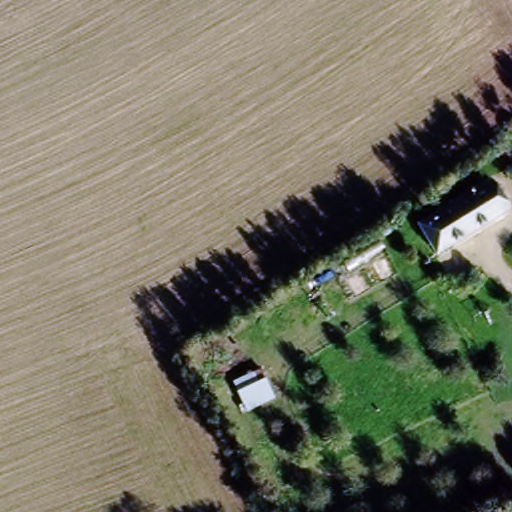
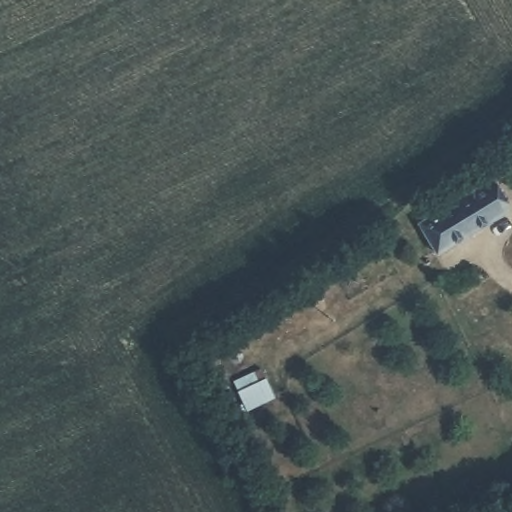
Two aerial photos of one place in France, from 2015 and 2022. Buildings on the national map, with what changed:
unchanged [(414,219),(485,174),(506,208),(435,248),(414,219)]

